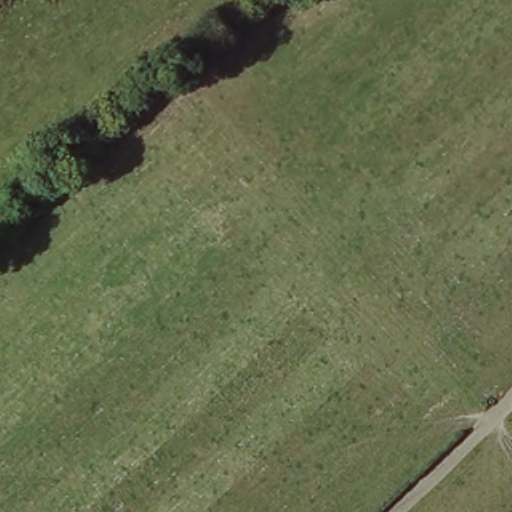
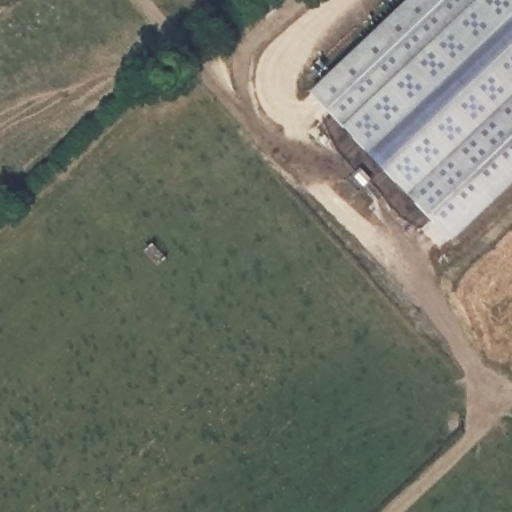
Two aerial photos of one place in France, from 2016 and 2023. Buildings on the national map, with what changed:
new [(310,93),(408,0),(512,0),(512,183),(453,239),(310,93)]

